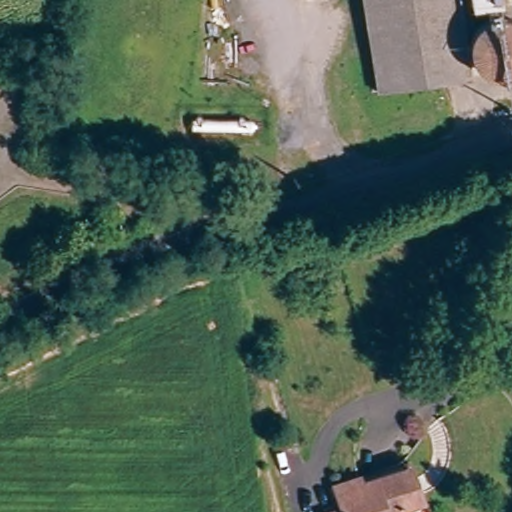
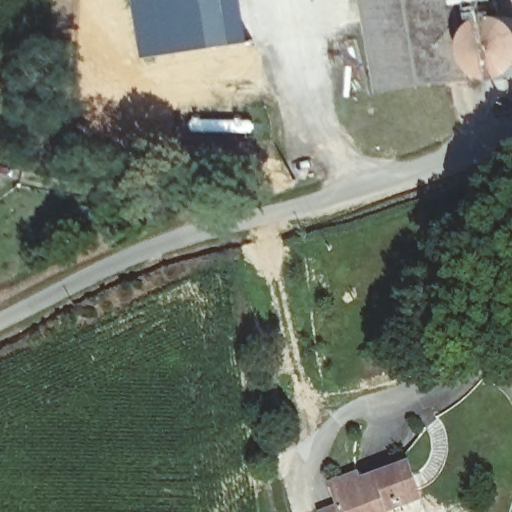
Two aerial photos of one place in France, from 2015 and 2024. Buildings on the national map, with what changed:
new [(141,57),(133,0),(245,0),(250,41),(141,57)]
unchanged [(460,73),(367,86),(356,0),(451,0),(457,46),(460,73)]
unchanged [(458,0),(466,0),(459,1),(458,0)]
unchanged [(462,28),(472,16),(479,13),(494,14),(511,19),(512,21),(512,64),(495,74),(487,74),(472,70),(461,55),(457,46),(462,28)]
unchanged [(7,87),(0,79),(0,70),(11,60),(21,75),(7,87)]
unchanged [(384,512),(329,512),(338,508),(328,485),(349,475),(356,491),(376,482),(372,472),(393,465),(401,461),(415,496),(407,500),(383,510),(384,512)]

